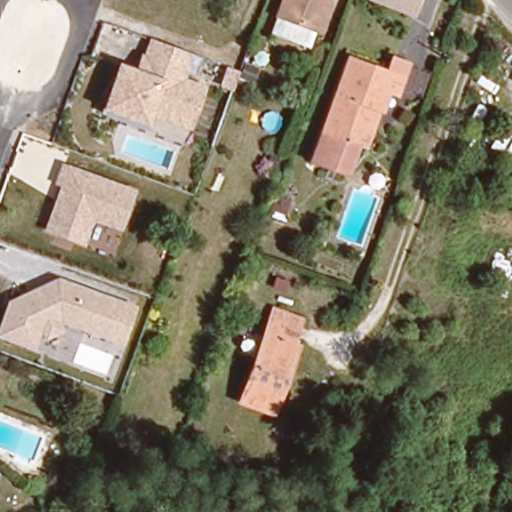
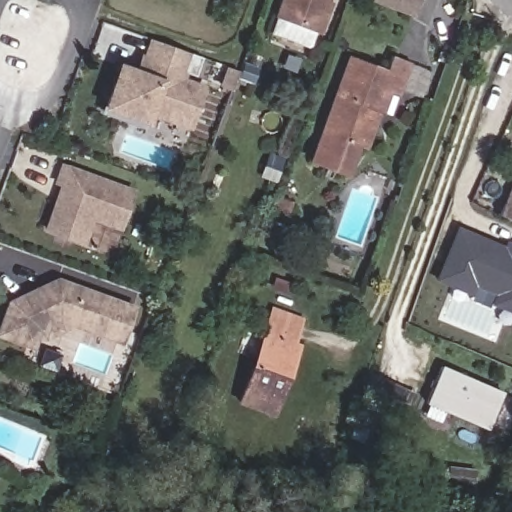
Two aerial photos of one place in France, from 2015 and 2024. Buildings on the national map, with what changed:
unchanged [(276,12),(281,0),(325,0),(324,2),(315,26),(307,45),(267,32),(276,12)]
unchanged [(366,0),(423,0),(416,18),(366,0)]
unchanged [(195,81),(209,85),(194,131),(148,116),(147,125),(101,109),(117,61),(141,69),(151,38),(203,57),(195,81)]
unchanged [(344,66),(381,80),(386,65),(403,71),(392,101),(377,95),(370,116),(361,113),(357,124),(368,128),(359,152),(349,149),(342,168),(311,156),(344,66)]
unchanged [(248,85),(236,80),(242,66),(254,71),(248,85)]
unchanged [(124,231),(92,220),(85,245),(46,231),(61,187),(54,185),(61,162),(138,190),(124,231)]
new [(494,213),(506,184),(512,187),(512,220),(494,213)]
new [(489,305),(493,295),(475,286),(470,296),(434,282),(457,225),(503,245),(505,240),(512,242),(512,315),(489,305)]
unchanged [(61,323),(65,333),(45,341),(40,333),(34,350),(0,337),(0,328),(8,299),(57,277),(139,305),(123,343),(61,323)]
unchanged [(238,399),(274,303),(302,315),(291,344),(297,347),(272,411),(238,399)]
new [(425,403),(439,365),(502,392),(486,430),(425,403)]

